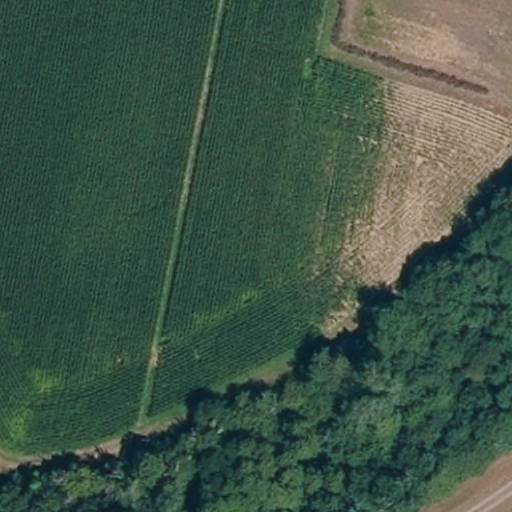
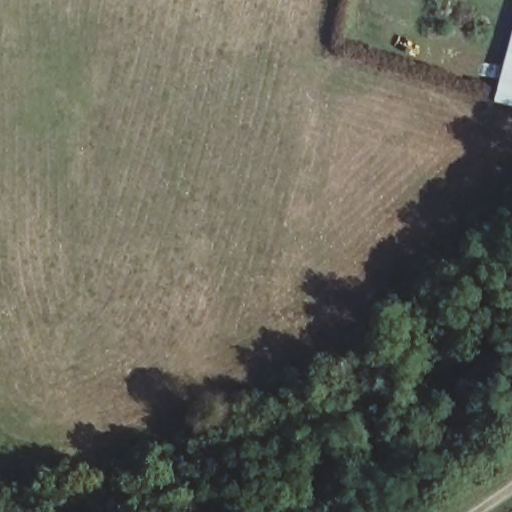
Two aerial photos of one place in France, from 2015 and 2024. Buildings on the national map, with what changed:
new [(495,101),(512,34),(512,106),(495,101)]

